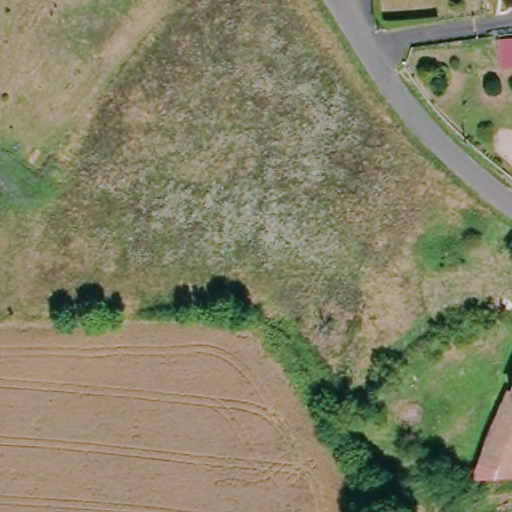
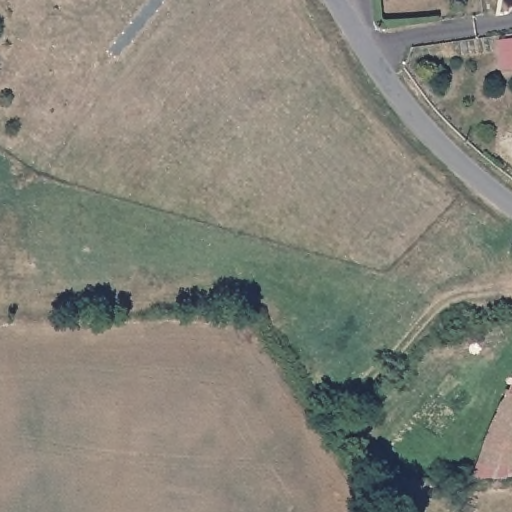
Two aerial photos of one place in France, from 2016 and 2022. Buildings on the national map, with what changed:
unchanged [(507,392),(512,378),(512,394),(507,392)]
unchanged [(507,478),(477,479),(507,392),(512,394),(512,463),(507,478)]

